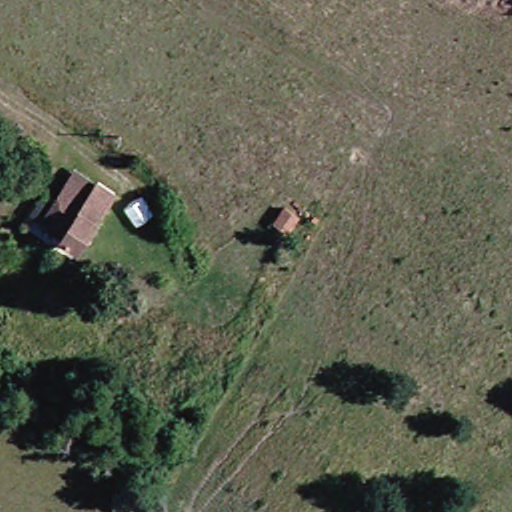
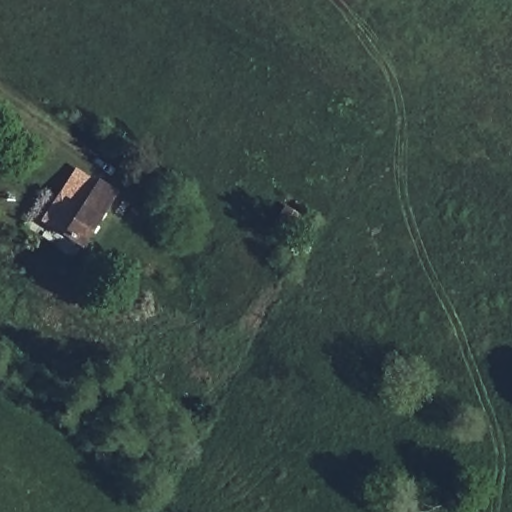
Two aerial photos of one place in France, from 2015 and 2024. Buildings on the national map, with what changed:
unchanged [(48,231),(29,218),(55,180),(101,211),(108,216),(85,254),(48,231)]

